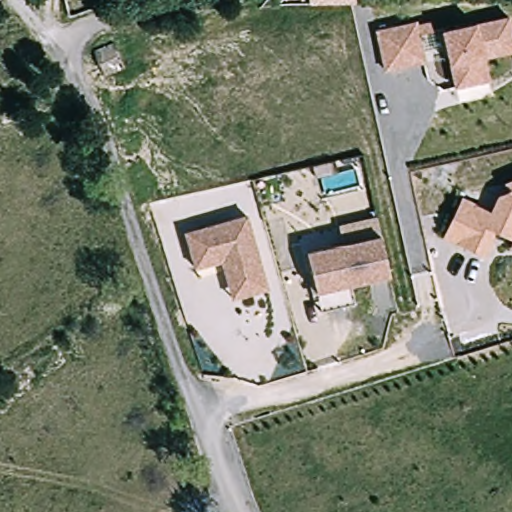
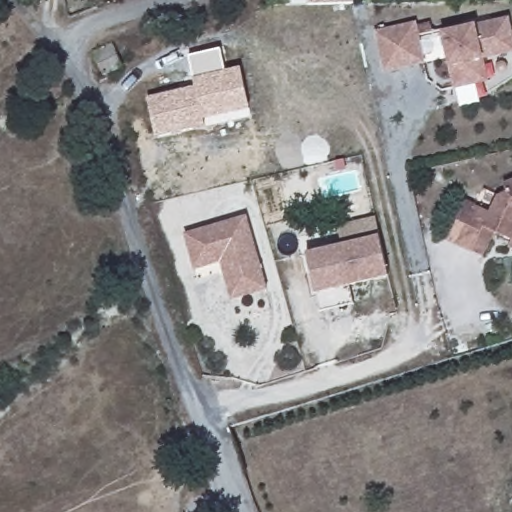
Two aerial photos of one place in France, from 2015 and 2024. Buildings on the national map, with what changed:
unchanged [(309,4),(308,0),(355,0),(355,3),(309,4)]
unchanged [(482,60),(487,83),(452,90),(447,66),(439,31),(475,24),(508,18),(512,36),(512,53),(482,60)]
unchanged [(383,72),(374,31),(414,22),(422,64),(383,72)]
unchanged [(123,69),(102,75),(96,52),(118,45),(123,69)]
new [(157,138),(147,97),(196,85),(189,56),(221,48),(226,70),(241,66),(251,109),(205,119),(206,126),(157,138)]
unchanged [(507,248),(510,241),(495,235),(481,258),(440,240),(459,198),(472,205),(490,211),(505,190),(502,182),(512,179),(512,250),(507,248)]
unchanged [(193,269),(182,232),(246,215),(266,290),(229,300),(219,262),(193,269)]
unchanged [(353,305),(320,312),(314,293),(305,253),(378,236),(387,278),(350,286),(353,305)]

